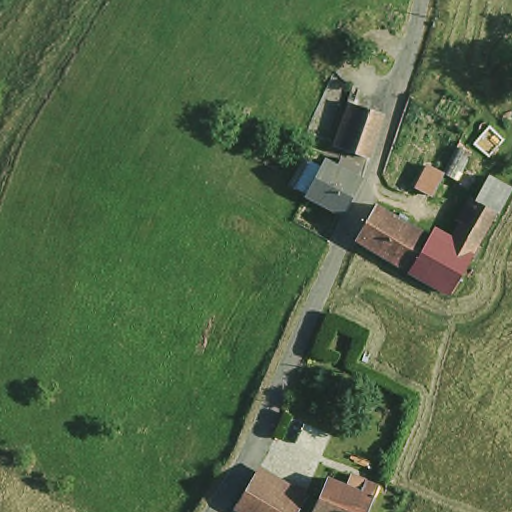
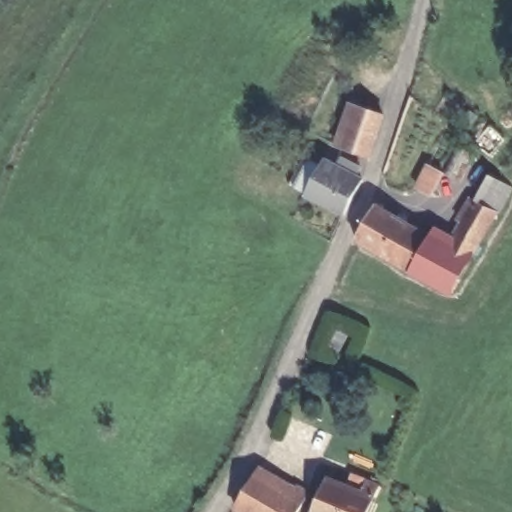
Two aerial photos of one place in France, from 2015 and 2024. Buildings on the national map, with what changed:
unchanged [(352,109),(376,117),(368,141),(362,160),(338,152),(344,133),(352,109)]
unchanged [(331,170),(336,161),(354,171),(350,179),(355,182),(337,217),(300,197),(285,188),(300,161),(315,170),(318,164),(331,170)]
unchanged [(428,168),(441,175),(430,196),(417,190),(428,168)]
unchanged [(429,242),(431,239),(450,250),(475,207),(488,183),(509,194),(496,219),(495,218),(476,251),(481,254),(475,265),(470,262),(449,299),(410,278),(429,242)]
unchanged [(396,270),(354,247),(375,211),(406,229),(429,242),(410,278),(396,270)]
unchanged [(297,488),(306,493),(301,502),(303,503),(297,512),(242,512),(236,509),(256,475),(292,496),(297,488)]
unchanged [(362,499),(367,488),(378,493),(373,503),(369,512),(315,512),(328,484),(362,499)]

